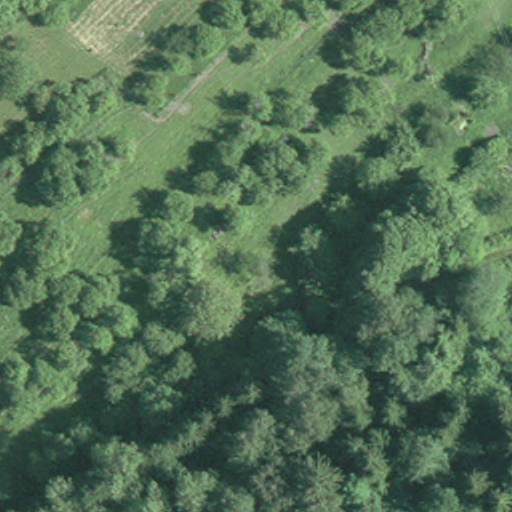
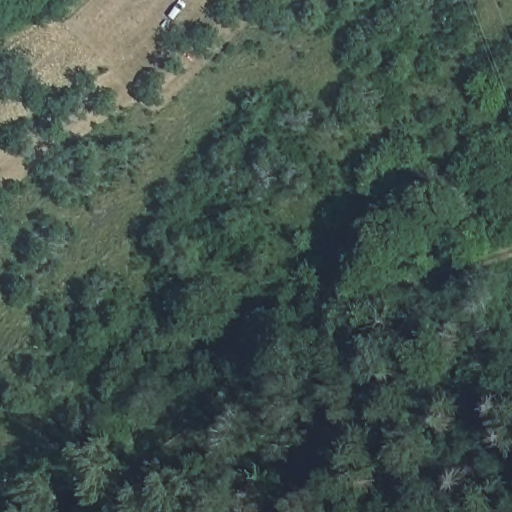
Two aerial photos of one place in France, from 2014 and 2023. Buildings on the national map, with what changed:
[]

